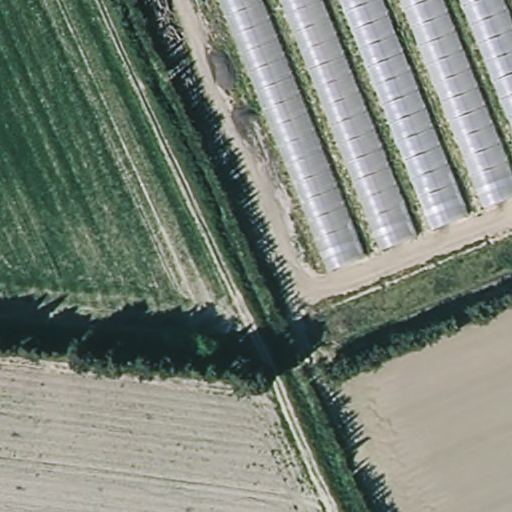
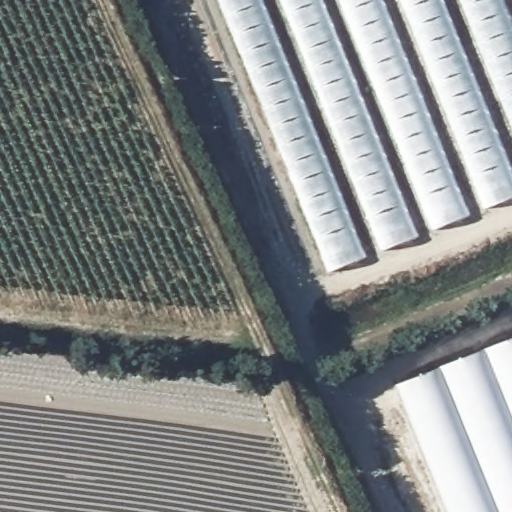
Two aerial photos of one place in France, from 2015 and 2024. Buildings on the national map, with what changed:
unchanged [(221,0),(512,0),(512,194),(329,270),(221,0)]
new [(512,338),(512,512),(443,512),(392,386),(512,338)]

